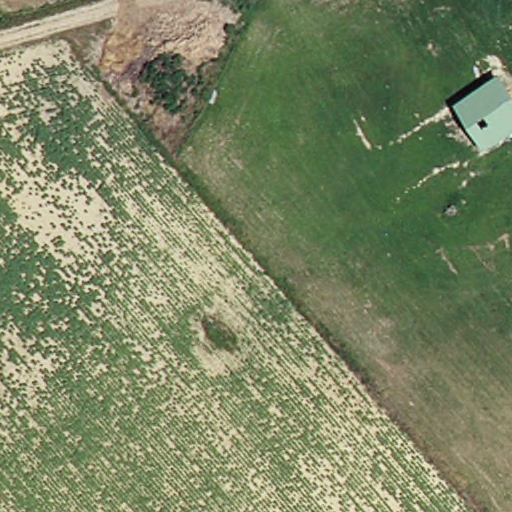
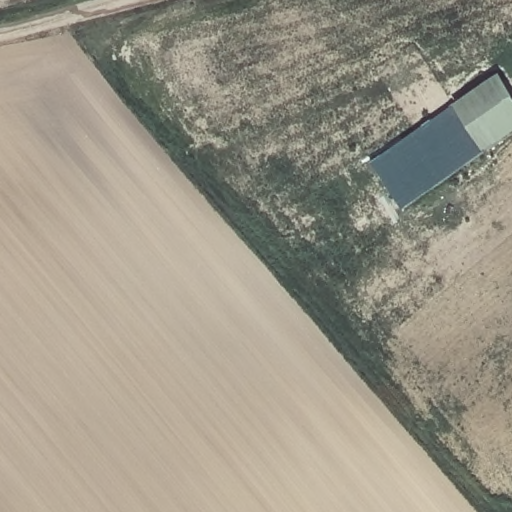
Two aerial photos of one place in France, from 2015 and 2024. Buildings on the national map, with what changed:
unchanged [(512,91),(512,132),(484,148),(451,100),(500,71),(512,91)]
new [(401,209),(366,162),(451,100),(484,148),(401,209)]

